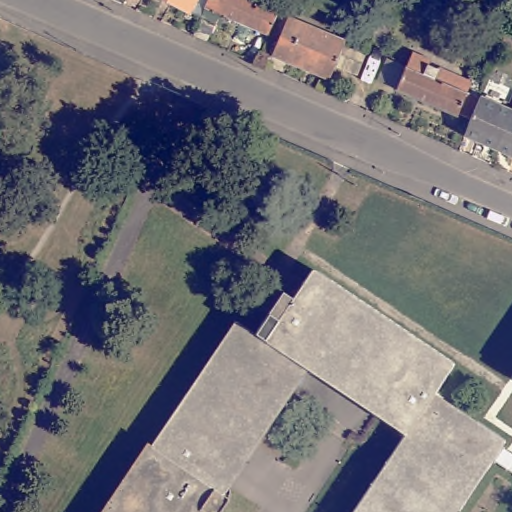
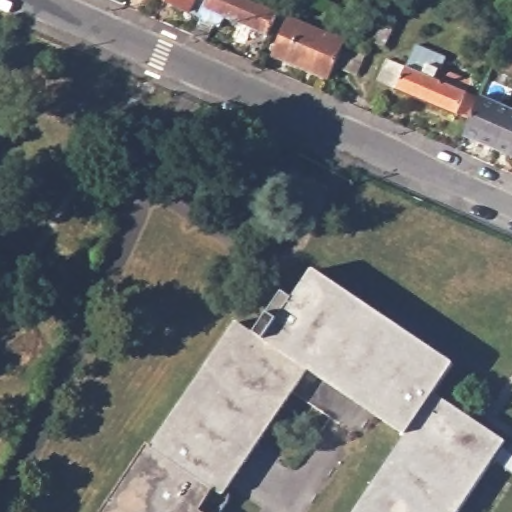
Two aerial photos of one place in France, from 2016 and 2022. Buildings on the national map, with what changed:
unchanged [(197,0),(192,11),(171,0),(197,0)]
unchanged [(208,0),(248,0),(276,12),(267,33),(205,7),(208,0)]
unchanged [(273,55),(289,17),(344,41),(328,79),(273,55)]
unchanged [(374,44),(380,29),(395,35),(393,40),(388,50),(374,44)]
unchanged [(463,114),(462,115),(401,90),(402,87),(382,79),(391,59),(484,98),(475,119),(463,114)]
unchanged [(470,135),(487,93),(512,104),(512,121),(501,148),(470,135)]
unchanged [(501,148),(512,121),(512,153),(501,148)]
unchanged [(153,442),(156,446),(240,322),(259,336),(286,296),(297,302),(318,272),(456,366),(436,396),(507,445),(461,512),(361,512),(412,436),(311,367),(232,483),(237,486),(233,495),(228,502),(223,508),(219,512),(106,512),(153,442)]
unchanged [(512,445),(512,469),(500,459),(510,443),(512,445)]

